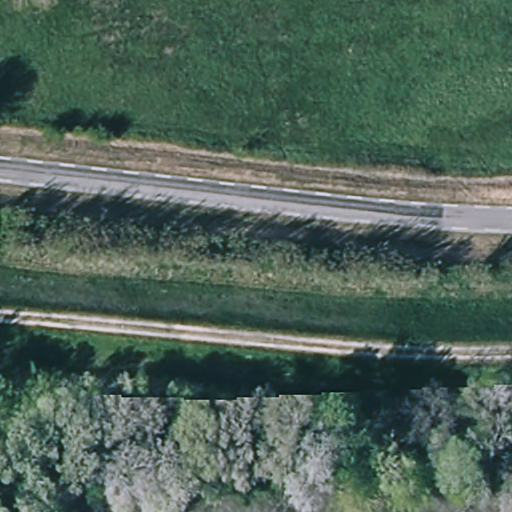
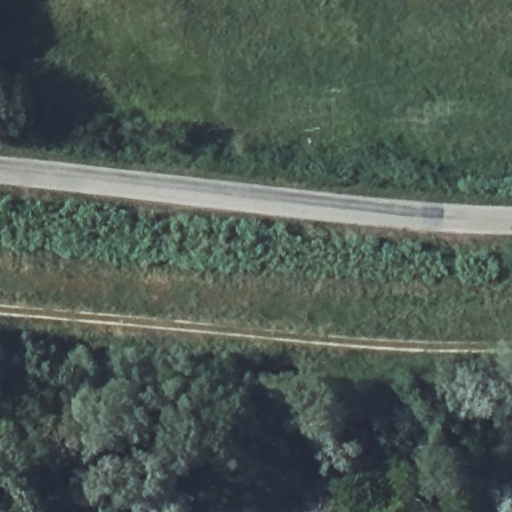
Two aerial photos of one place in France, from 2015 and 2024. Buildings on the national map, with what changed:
[]

